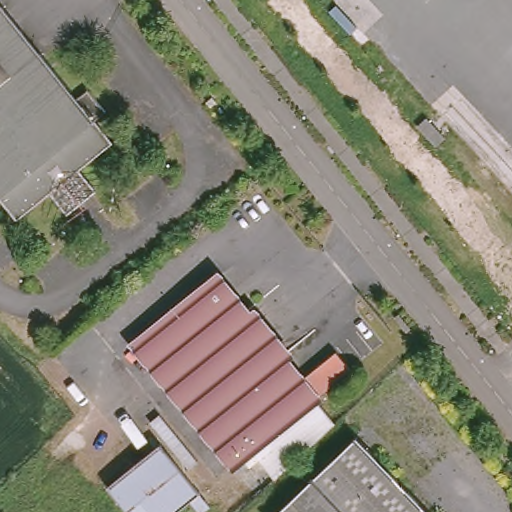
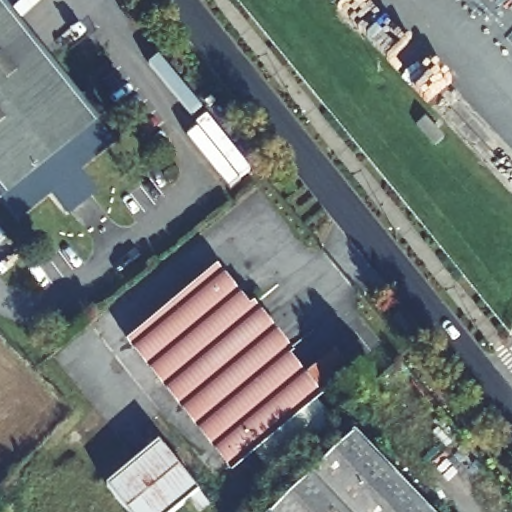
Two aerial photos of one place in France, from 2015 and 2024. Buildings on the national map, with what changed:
unchanged [(88,96),(107,118),(96,126),(113,146),(94,161),(114,188),(55,235),(35,209),(18,222),(0,200),(0,11),(77,104),(88,96)]
unchanged [(129,347),(219,275),(304,379),(337,352),(351,369),(318,397),(336,419),(287,467),(277,455),(267,464),(254,450),(232,468),(213,445),(183,409),(129,347)]
unchanged [(355,438),(426,512),(276,512),(355,438)]
unchanged [(202,512),(199,512),(191,503),(179,512),(127,512),(108,489),(162,446),(202,494),(211,505),(202,512)]

